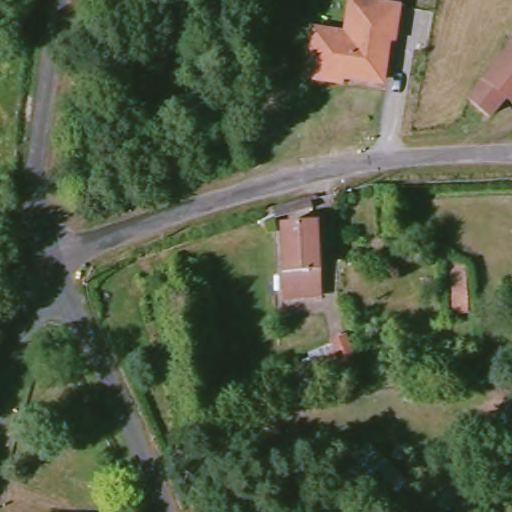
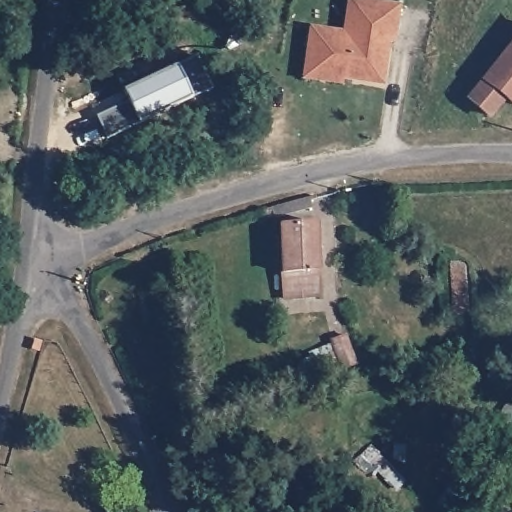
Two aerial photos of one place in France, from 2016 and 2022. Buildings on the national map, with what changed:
unchanged [(394,38),(388,38),(382,84),(344,78),(342,84),(300,78),(307,25),(340,29),(345,0),(366,0),(397,4),(394,38)]
unchanged [(505,97),(488,113),(467,96),(512,45),(512,102),(505,97)]
new [(212,88),(192,99),(137,125),(107,139),(97,116),(130,101),(124,90),(177,65),(197,55),(212,88)]
unchanged [(317,221),(318,296),(282,296),(280,219),(317,221)]
unchanged [(333,368),(325,345),(323,339),(345,331),(355,361),(341,366),(333,368)]
unchanged [(355,459),(372,442),(412,484),(391,495),(355,459)]

